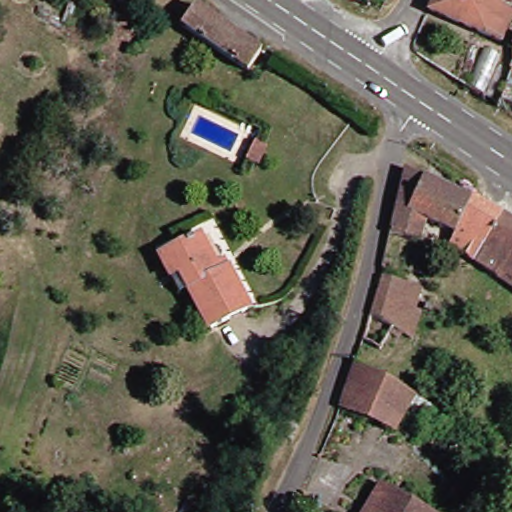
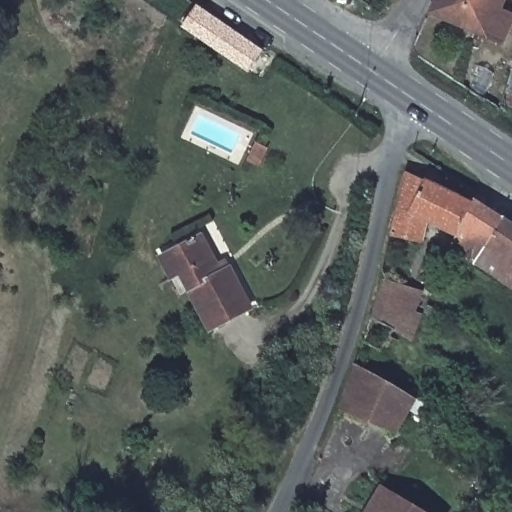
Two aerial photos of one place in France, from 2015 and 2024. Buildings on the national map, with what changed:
unchanged [(494,5),(509,12),(497,39),(426,8),(429,0),(496,0),(494,5)]
unchanged [(177,23),(192,1),(259,45),(244,68),(205,41),(177,23)]
unchanged [(429,181),(476,204),(461,237),(433,224),(427,243),(394,236),(410,175),(429,181)]
unchanged [(478,200),(508,219),(479,266),(455,251),(461,237),(476,204),(478,200)]
unchanged [(508,219),(512,222),(512,288),(479,266),(508,219)]
unchanged [(220,265),(229,261),(255,308),(211,329),(182,272),(173,277),(162,256),(204,235),(220,265)]
unchanged [(385,288),(387,280),(427,292),(421,313),(427,316),(419,342),(409,337),(404,344),(396,338),(386,355),(368,342),(377,315),(385,288)]
unchanged [(400,434),(347,411),(361,367),(421,400),(400,434)]
unchanged [(290,445),(279,440),(287,423),(297,428),(290,445)]
unchanged [(368,512),(381,490),(418,512),(368,512)]

